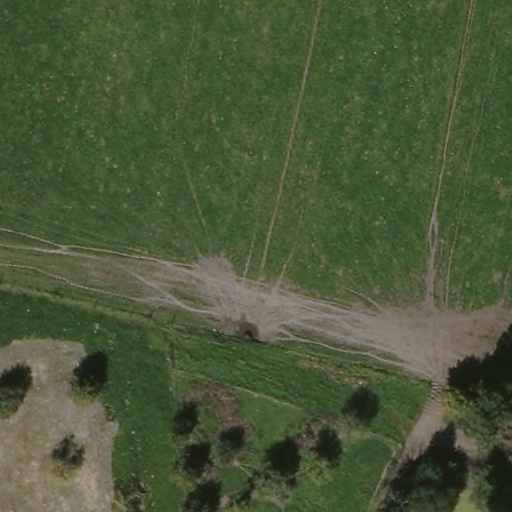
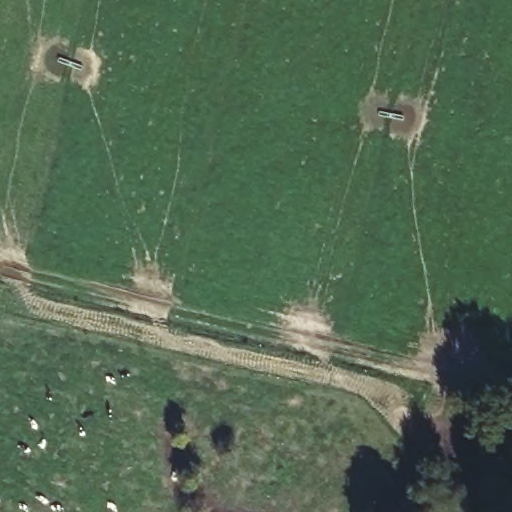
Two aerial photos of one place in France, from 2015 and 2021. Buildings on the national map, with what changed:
[]

